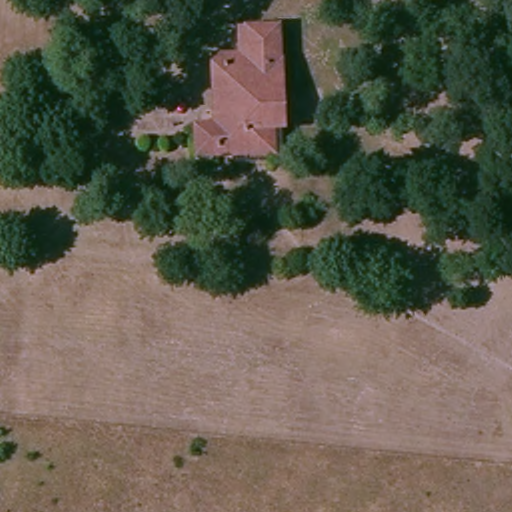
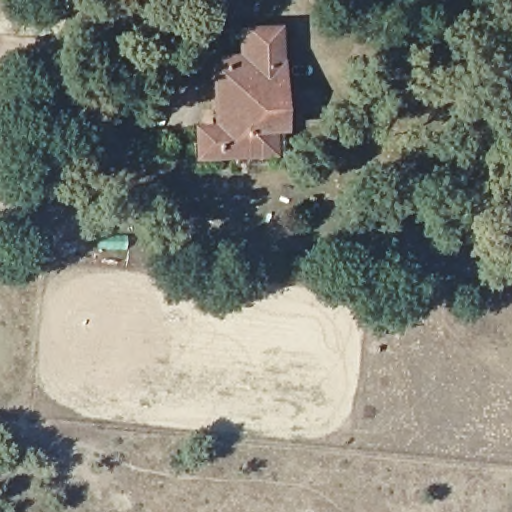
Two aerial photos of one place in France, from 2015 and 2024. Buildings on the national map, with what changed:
unchanged [(227,160),(227,149),(194,149),(192,121),(211,121),(215,54),(235,54),(235,26),(274,27),(272,160),(227,160)]

